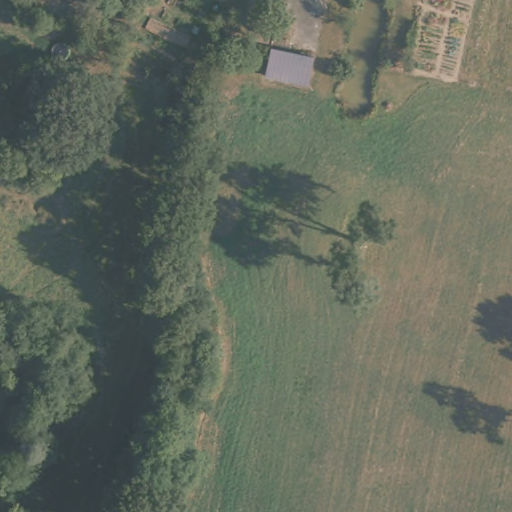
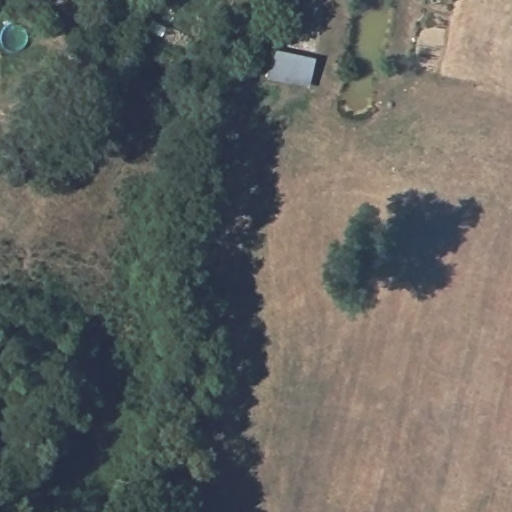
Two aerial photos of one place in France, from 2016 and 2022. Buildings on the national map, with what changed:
unchanged [(283,51),(328,61),(323,79),(322,88),(276,77),(278,70),(283,51)]

